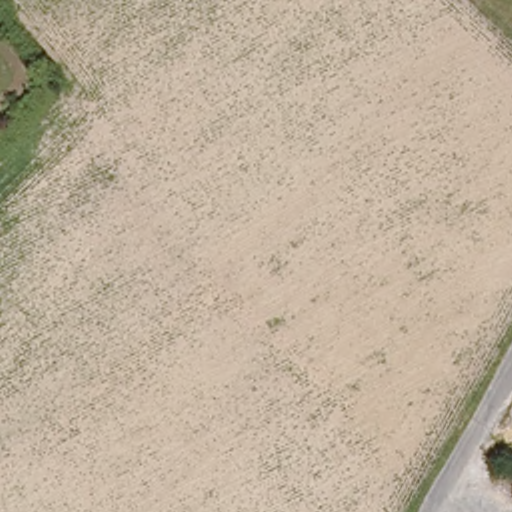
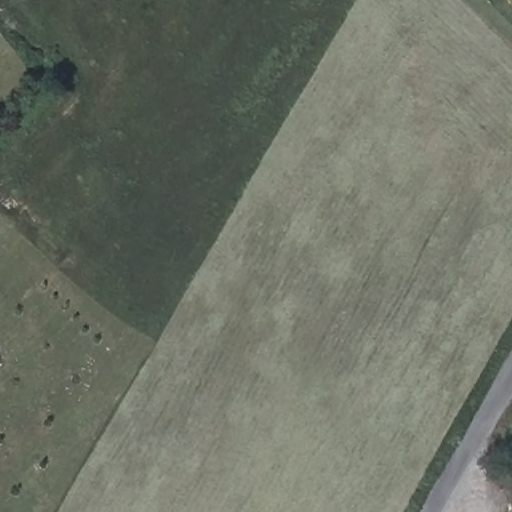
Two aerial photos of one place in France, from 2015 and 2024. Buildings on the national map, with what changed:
[]

